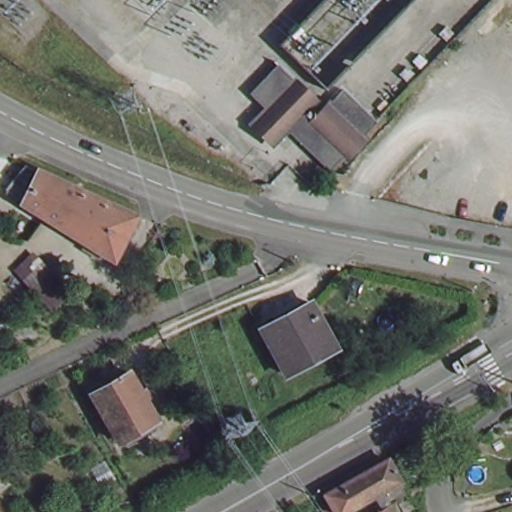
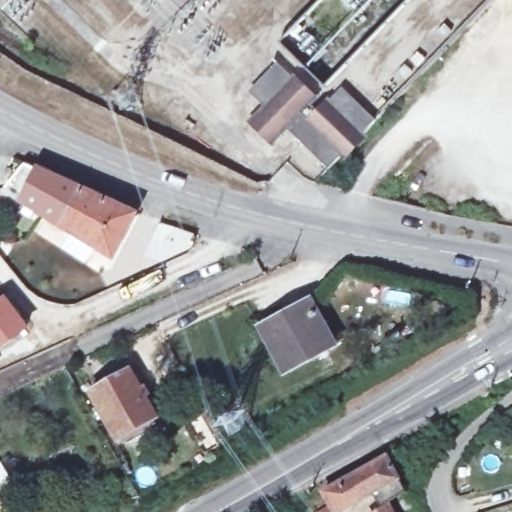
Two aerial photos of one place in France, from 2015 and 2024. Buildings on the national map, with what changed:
unchanged [(325,82),(283,39),(323,0),(407,0),(325,82)]
unchanged [(325,101),(340,85),(374,115),(330,162),(290,126),(275,140),(250,114),(262,100),(250,89),(277,59),(325,101)]
unchanged [(67,191),(72,193),(131,219),(109,262),(47,222),(33,213),(1,192),(15,167),(67,191)]
unchanged [(75,272),(65,296),(48,287),(45,297),(32,291),(47,258),(75,272)]
new [(30,327),(0,348),(0,297),(5,293),(30,327)]
unchanged [(330,352),(278,376),(259,332),(310,308),(330,352)]
unchanged [(153,423),(115,445),(88,396),(125,376),(153,423)]
unchanged [(340,512),(332,512),(321,490),(383,457),(396,482),(340,512)]
unchanged [(380,512),(390,507),(392,512),(380,512)]

